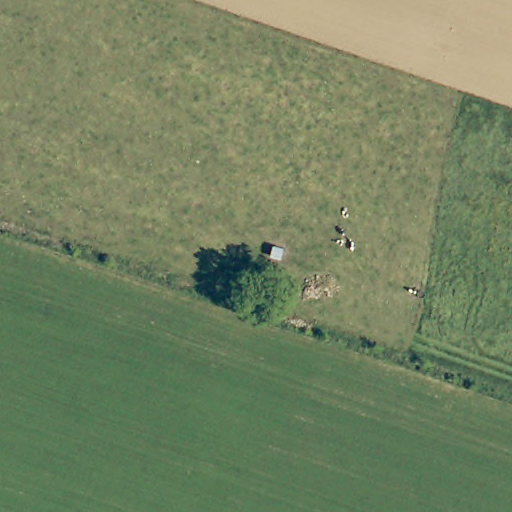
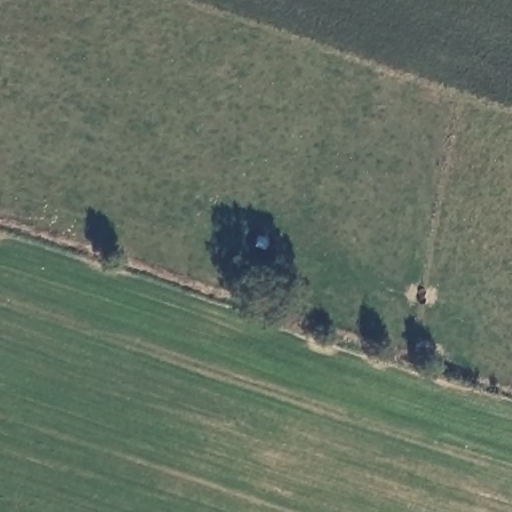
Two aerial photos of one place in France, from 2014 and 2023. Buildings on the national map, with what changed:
[]

